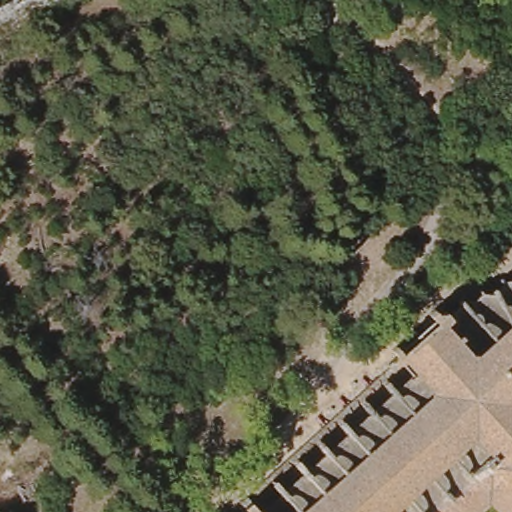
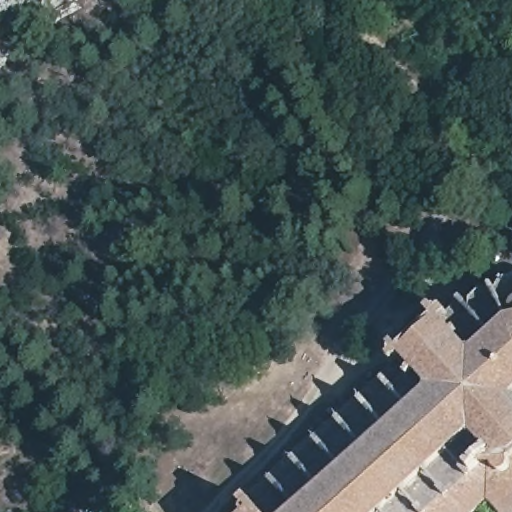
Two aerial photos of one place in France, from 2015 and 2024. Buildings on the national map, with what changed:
unchanged [(397,366),(392,360),(447,311),(448,313),(462,305),(492,289),(511,285),(512,285),(512,483),(490,503),(480,512),(250,512),(243,504),(397,366)]
unchanged [(512,483),(512,512),(498,512),(490,503),(512,483)]

